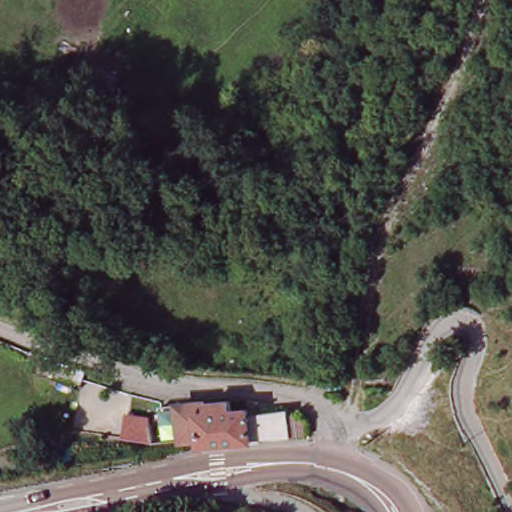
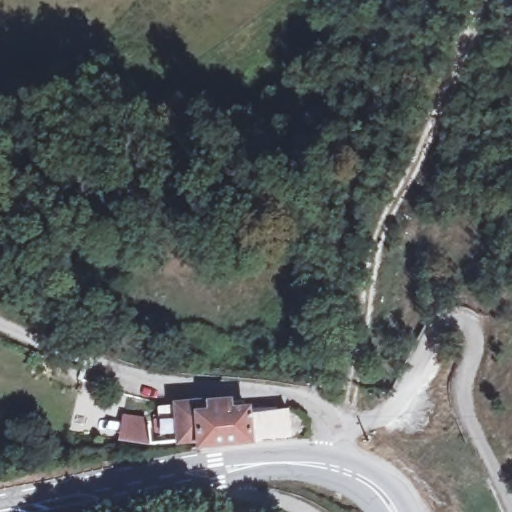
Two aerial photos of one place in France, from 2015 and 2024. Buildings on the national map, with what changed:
unchanged [(234,411),(280,404),(291,407),(294,408),(295,438),(222,447),(204,449),(204,440),(184,442),(163,443),(161,423),(160,408),(182,406),(233,399),(234,411)]

